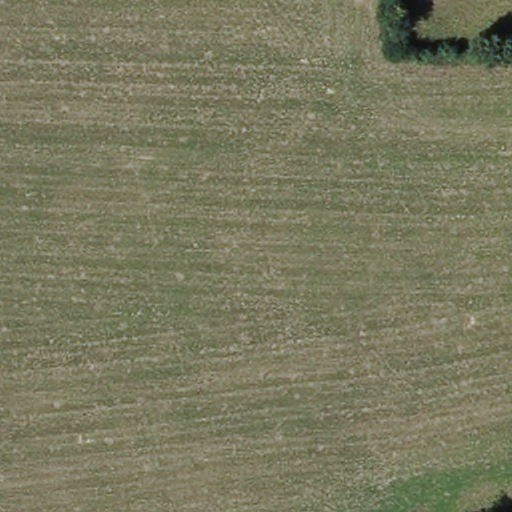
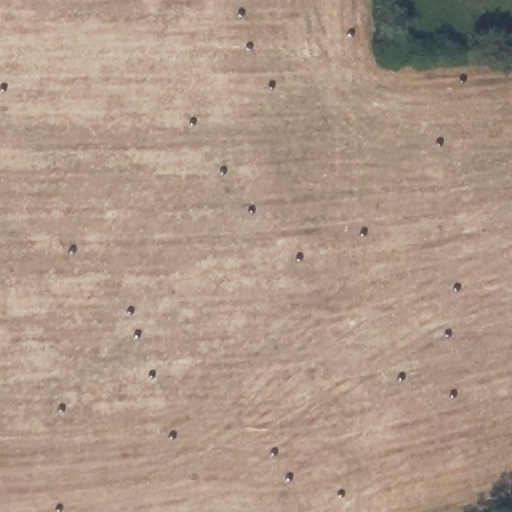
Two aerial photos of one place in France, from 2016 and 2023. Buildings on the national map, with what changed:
[]

